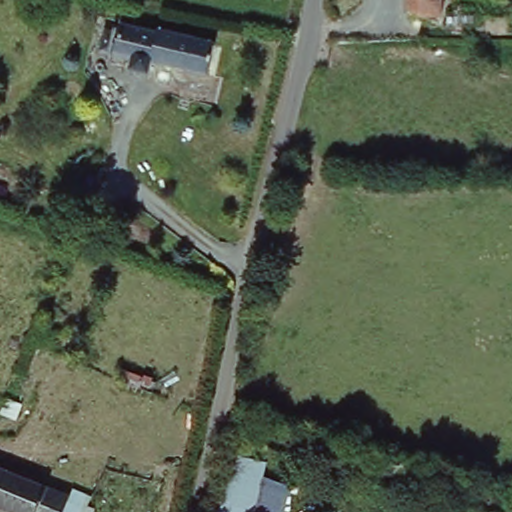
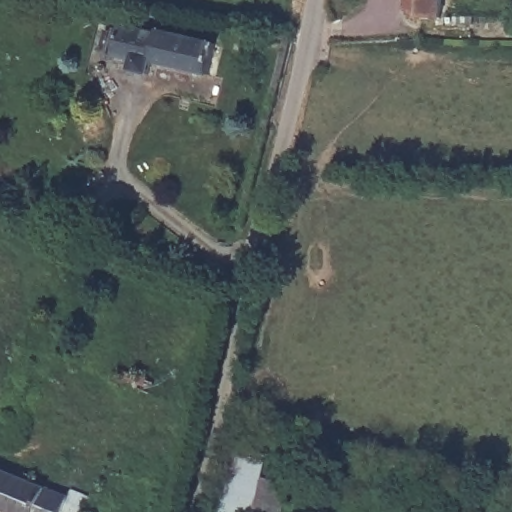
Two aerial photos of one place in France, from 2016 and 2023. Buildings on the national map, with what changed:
unchanged [(446,16),(427,16),(412,8),(413,0),(446,0),(446,16)]
unchanged [(223,73),(167,59),(164,71),(147,67),(149,57),(117,49),(121,30),(135,33),(137,23),(172,31),(172,27),(231,41),(223,73)]
unchanged [(34,320),(47,325),(39,343),(26,338),(34,320)]
unchanged [(267,461),(266,476),(293,487),(286,512),(221,512),(236,454),(267,461)]
unchanged [(67,482),(94,493),(86,512),(22,512),(0,503),(0,463),(65,489),(67,482)]

